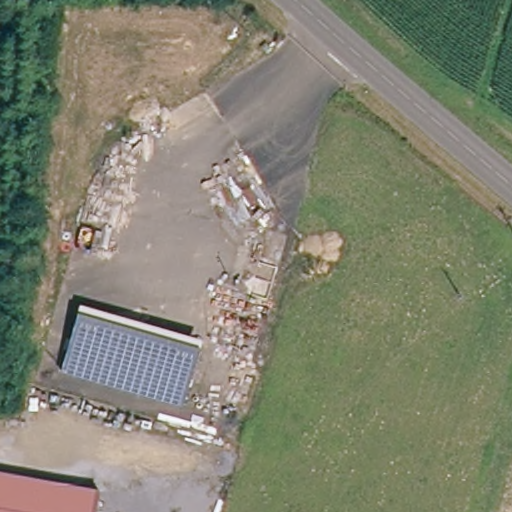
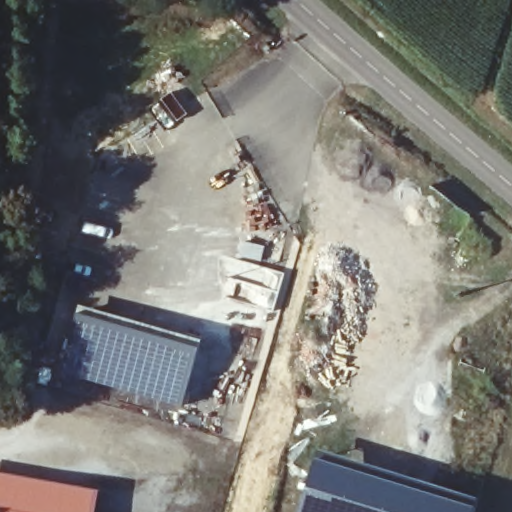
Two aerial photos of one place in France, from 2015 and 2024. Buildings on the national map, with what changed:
demolished [(216,283),(197,279),(208,239),(226,243),(216,283)]
unchanged [(80,306),(200,339),(183,405),(62,369),(80,306)]
new [(474,512),(299,512),(318,448),(479,499),(474,512)]
unchanged [(95,491),(90,512),(0,512),(0,473),(95,491)]

